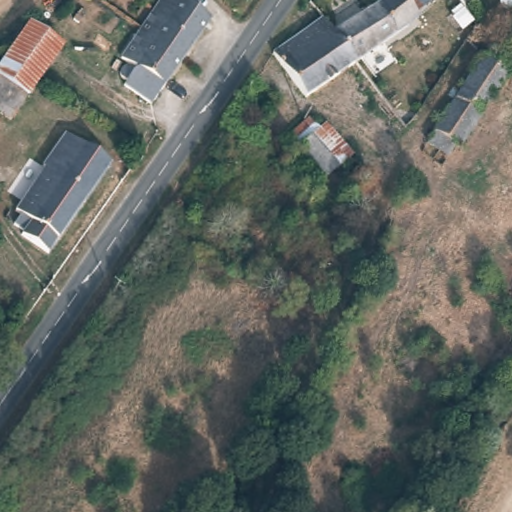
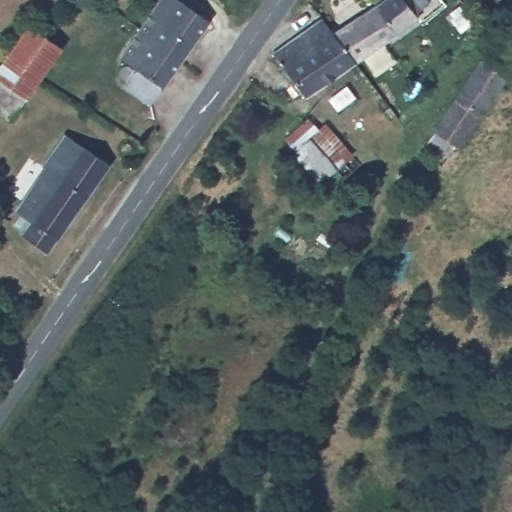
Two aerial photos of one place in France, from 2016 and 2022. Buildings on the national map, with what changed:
unchanged [(146,18),(138,11),(146,0),(150,0),(156,3),(160,0),(182,0),(210,18),(152,102),(126,83),(129,78),(123,67),(127,57),(123,52),(146,18)]
unchanged [(330,34),(378,0),(416,0),(421,7),(411,15),(411,19),(351,61),(330,34)]
unchanged [(318,20),(330,34),(351,61),(302,98),(272,55),(318,20)]
unchanged [(23,27),(33,30),(59,48),(38,80),(2,56),(6,51),(23,27)]
unchanged [(23,100),(0,83),(0,59),(2,56),(38,80),(23,100)]
unchanged [(439,123),(483,57),(510,75),(460,149),(453,147),(447,157),(427,144),(439,123)]
unchanged [(23,100),(6,123),(0,119),(0,83),(23,100)]
unchanged [(307,119),(319,130),(327,125),(351,155),(321,183),(296,156),(295,148),(285,137),(307,119)]
unchanged [(22,210),(17,206),(65,134),(108,163),(50,250),(28,236),(14,221),(22,210)]

